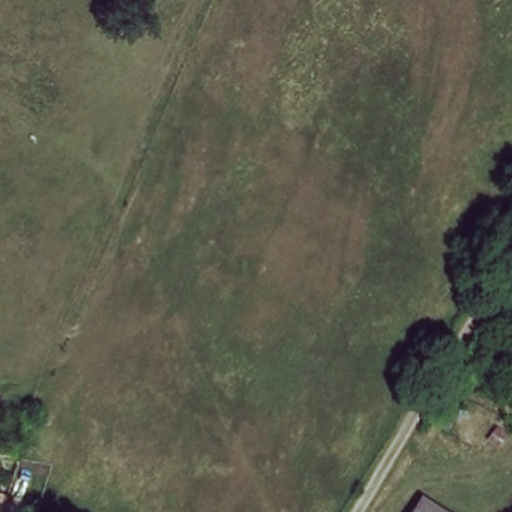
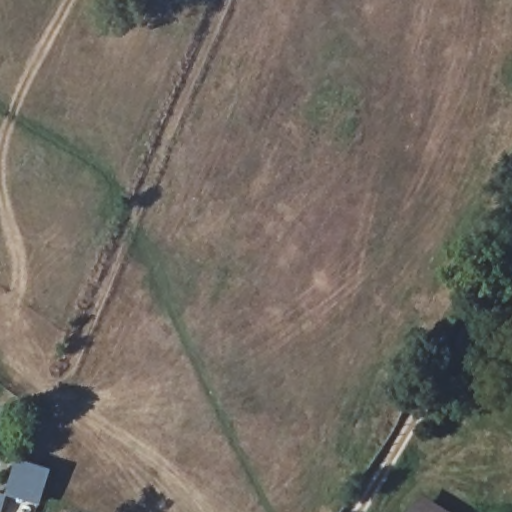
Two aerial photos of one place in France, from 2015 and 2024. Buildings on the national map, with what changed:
new [(0,495),(6,497),(17,462),(50,472),(40,507),(8,497),(3,512),(0,512),(0,495)]
unchanged [(424,495),(454,512),(414,512),(424,495)]

